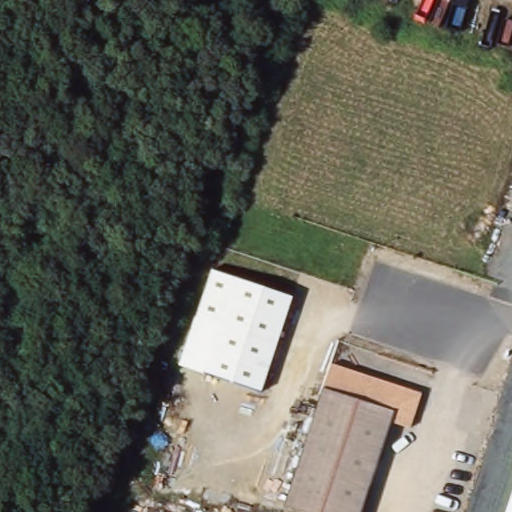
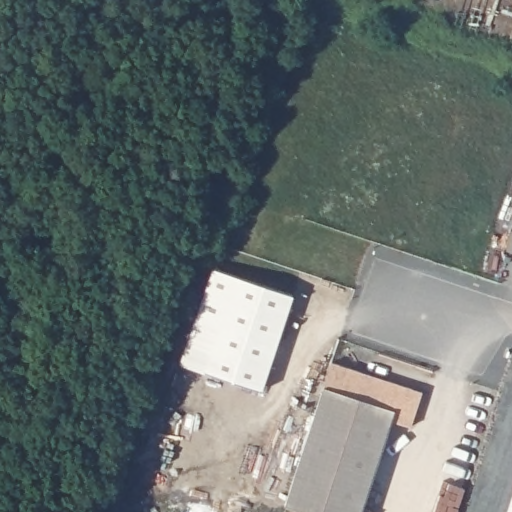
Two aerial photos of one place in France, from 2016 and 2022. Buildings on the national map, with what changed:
unchanged [(290,298),(260,392),(200,371),(215,324),(195,319),(210,270),(290,298)]
unchanged [(359,512),(280,512),(325,375),(406,402),(415,405),(412,415),(404,439),(385,433),(359,512)]
unchanged [(512,512),(507,512),(512,496),(512,512)]

